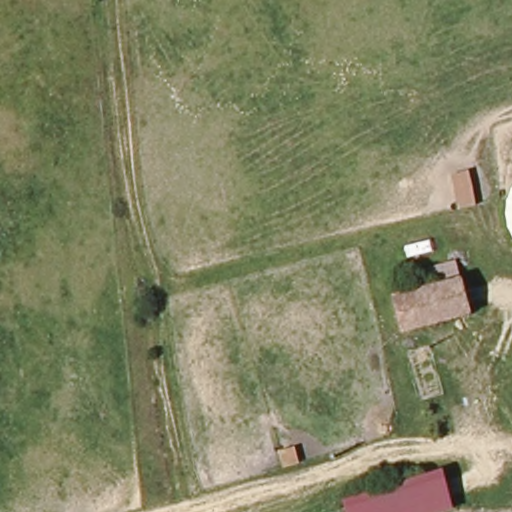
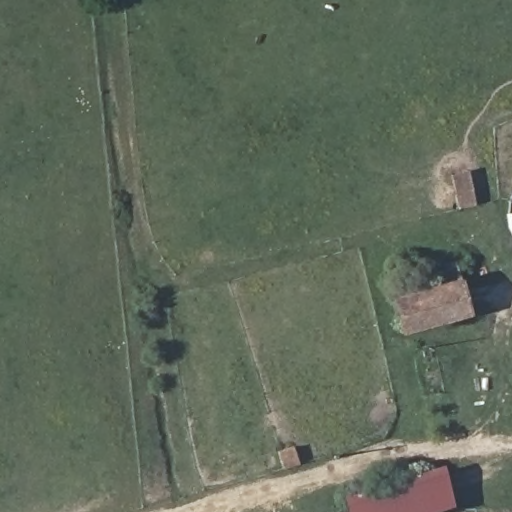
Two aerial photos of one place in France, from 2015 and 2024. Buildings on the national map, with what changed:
unchanged [(472,311),(412,328),(401,298),(464,284),(472,311)]
unchanged [(346,512),(344,504),(446,474),(454,512),(346,512)]

